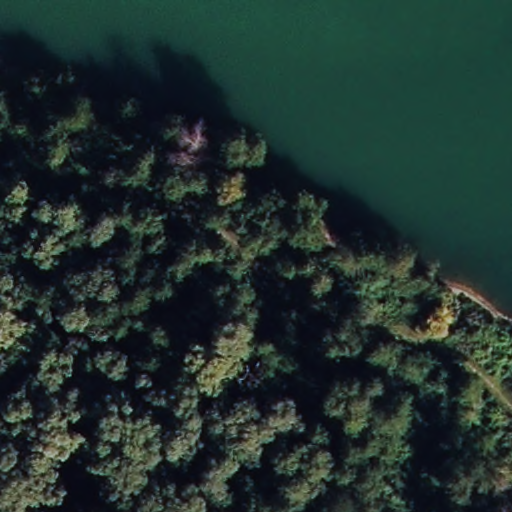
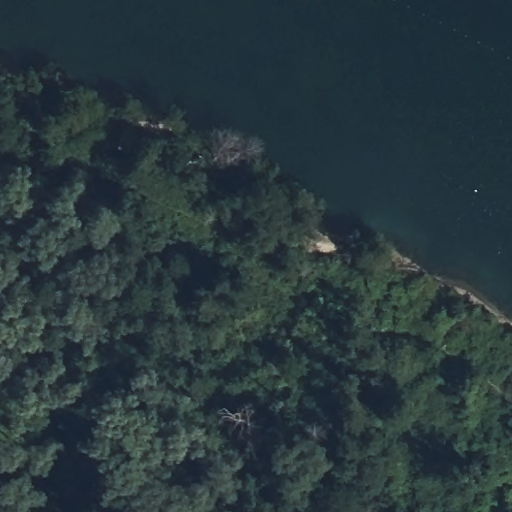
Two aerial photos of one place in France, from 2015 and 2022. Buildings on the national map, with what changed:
[]

